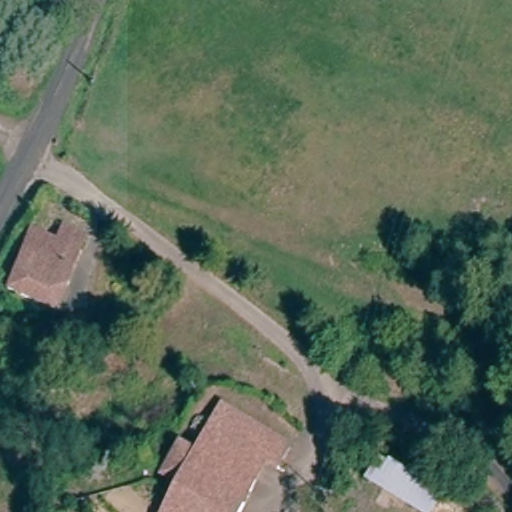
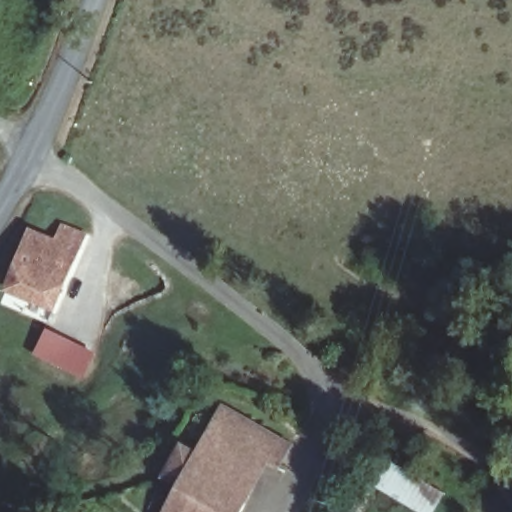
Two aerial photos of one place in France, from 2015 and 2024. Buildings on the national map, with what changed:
unchanged [(40,168),(69,186),(57,206),(47,201),(42,210),(22,197),(40,168)]
unchanged [(31,232),(52,245),(60,231),(68,236),(61,251),(70,255),(45,308),(5,285),(31,232)]
new [(95,352),(81,379),(32,356),(45,329),(95,352)]
unchanged [(285,361),(310,373),(300,391),(275,378),(285,361)]
unchanged [(202,455),(226,410),(291,443),(282,463),(271,458),(242,512),(169,512),(176,499),(164,491),(186,447),(202,455)]
unchanged [(385,457),(443,492),(432,512),(418,512),(367,481),(385,457)]

